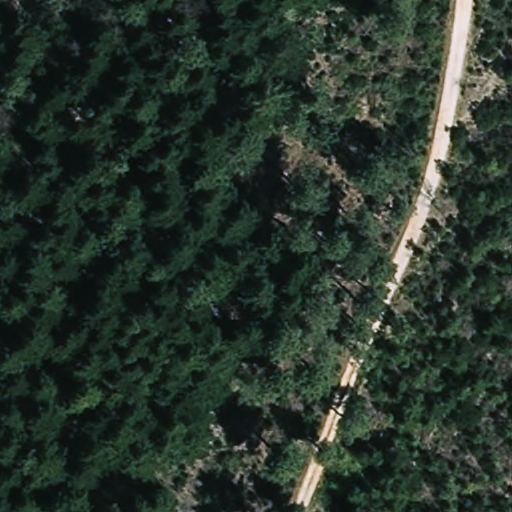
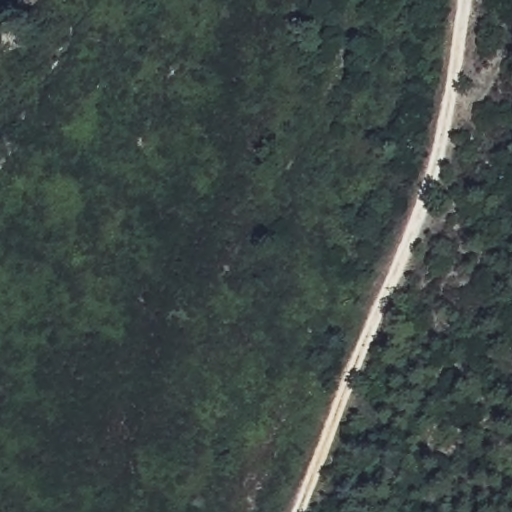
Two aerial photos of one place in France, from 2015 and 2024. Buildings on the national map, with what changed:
[]

